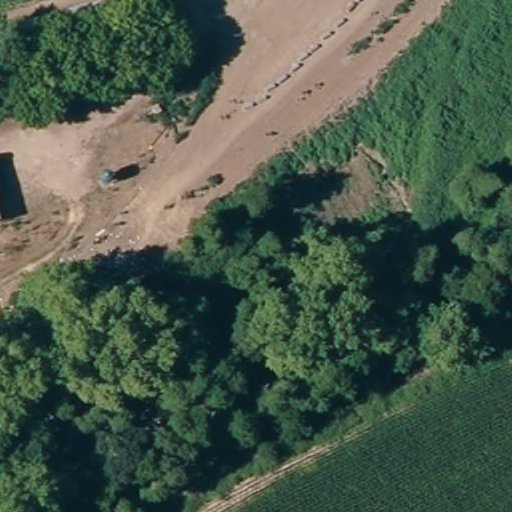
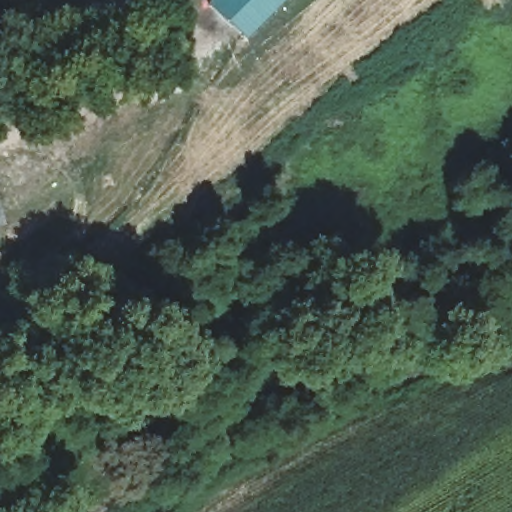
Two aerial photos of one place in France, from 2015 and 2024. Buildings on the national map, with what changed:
unchanged [(0,81),(0,25),(85,0),(126,0),(140,43),(109,51),(25,75),(0,81)]
new [(244,40),(205,4),(209,0),(283,0),(244,40)]

